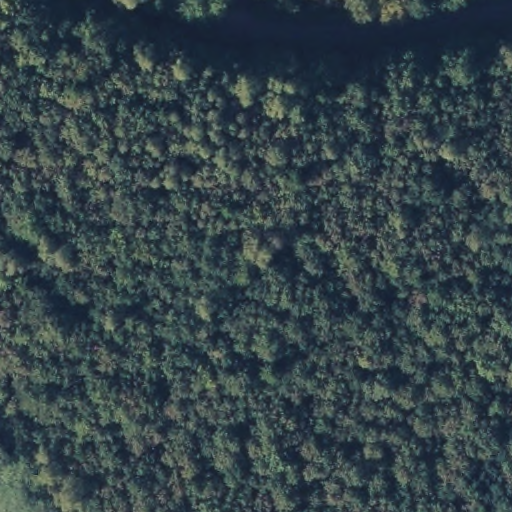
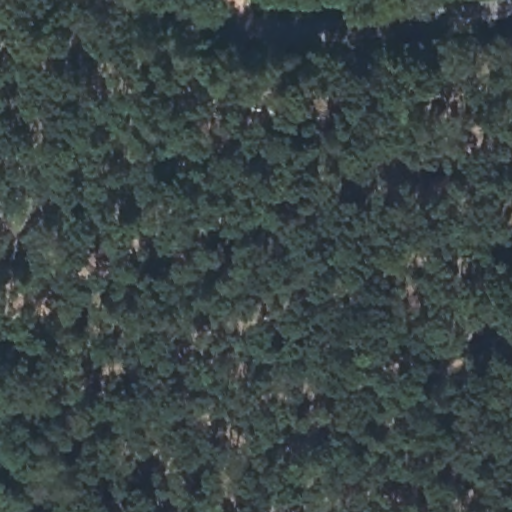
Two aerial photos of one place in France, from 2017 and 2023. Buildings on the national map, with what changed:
[]

